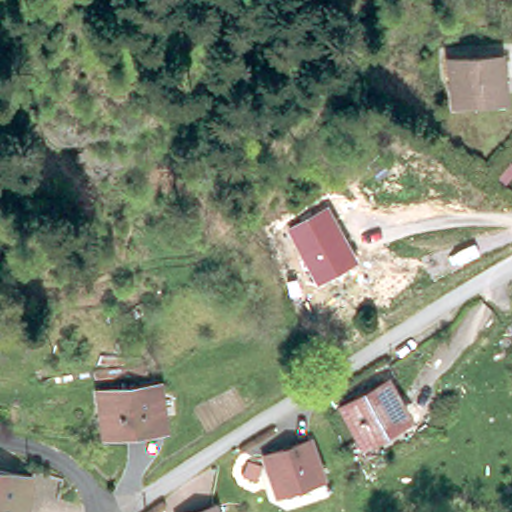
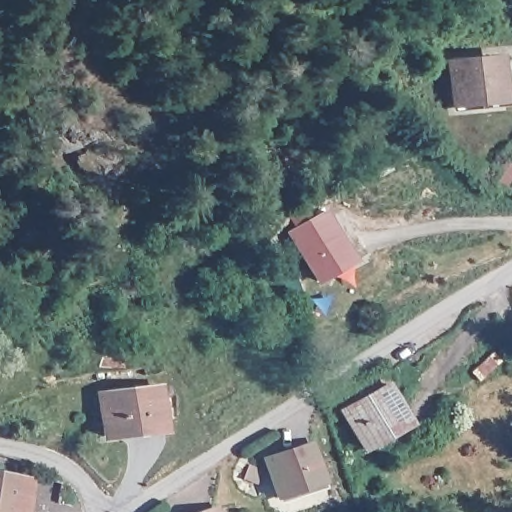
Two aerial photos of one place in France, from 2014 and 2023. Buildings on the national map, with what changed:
unchanged [(509,99),(460,105),(453,66),(504,61),(509,99)]
unchanged [(360,258),(321,282),(304,254),(336,235),(342,245),(350,241),(360,258)]
unchanged [(412,423),(368,447),(348,411),(393,387),(412,423)]
unchanged [(167,433),(153,435),(103,440),(98,399),(165,392),(165,401),(167,433)]
unchanged [(305,490),(280,498),(267,458),(313,442),(321,466),(327,482),(305,490)]
unchanged [(0,512),(0,470),(36,477),(29,512),(0,512)]
unchanged [(233,512),(203,512),(232,507),(233,512)]

